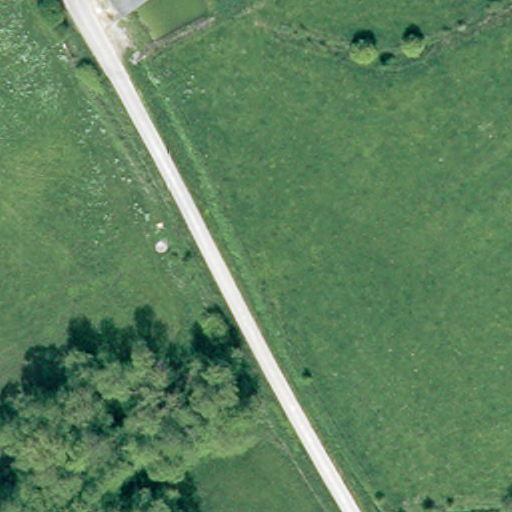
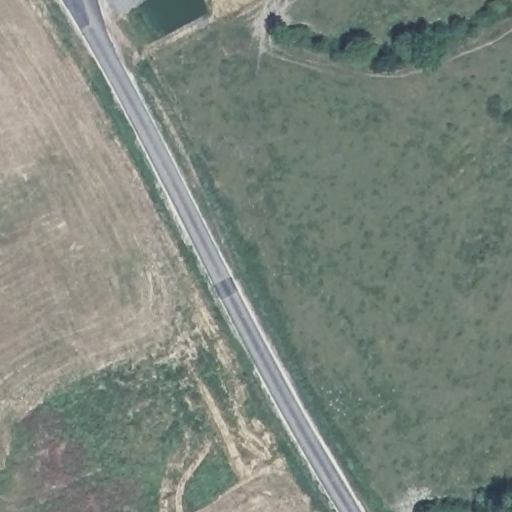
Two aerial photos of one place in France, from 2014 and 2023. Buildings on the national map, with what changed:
unchanged [(124,10),(116,0),(139,0),(124,10)]

